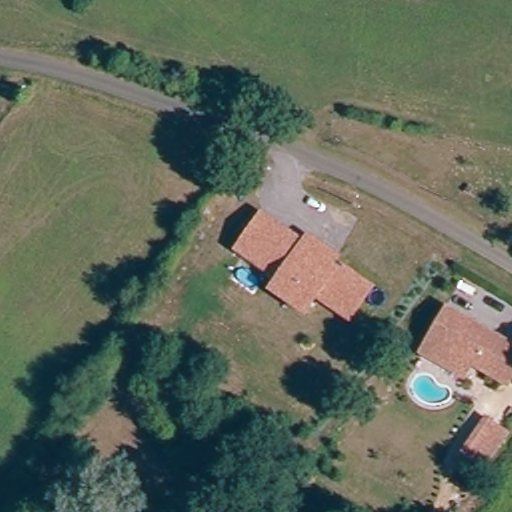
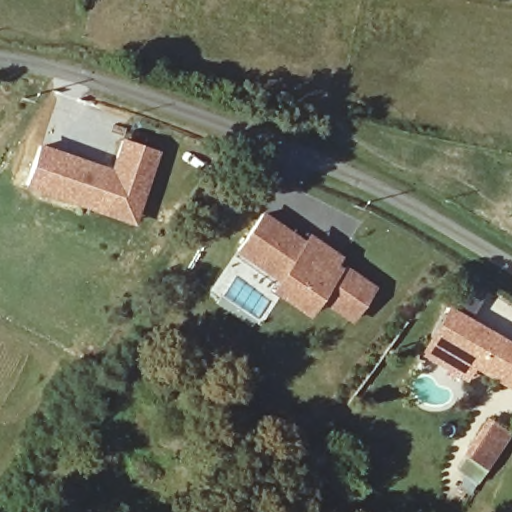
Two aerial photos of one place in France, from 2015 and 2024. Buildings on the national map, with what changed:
new [(111,168),(121,138),(160,150),(135,225),(22,187),(36,143),(111,168)]
unchanged [(353,320),(318,298),(305,314),(268,290),(276,279),(236,250),(262,212),(305,238),(308,233),(343,258),(339,264),(375,286),(353,320)]
unchanged [(441,349),(472,367),(465,380),(420,356),(446,309),(459,317),(441,349)]
unchanged [(512,347),(512,385),(510,389),(472,367),(441,349),(459,317),(482,329),(483,335),(489,339),(495,337),(512,347)]
unchanged [(488,468),(462,454),(485,415),(510,431),(488,468)]

